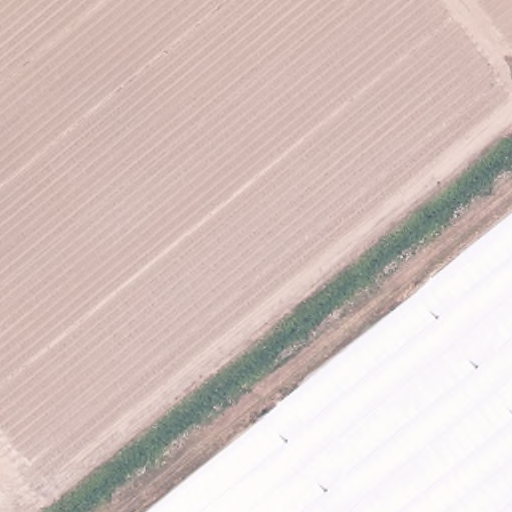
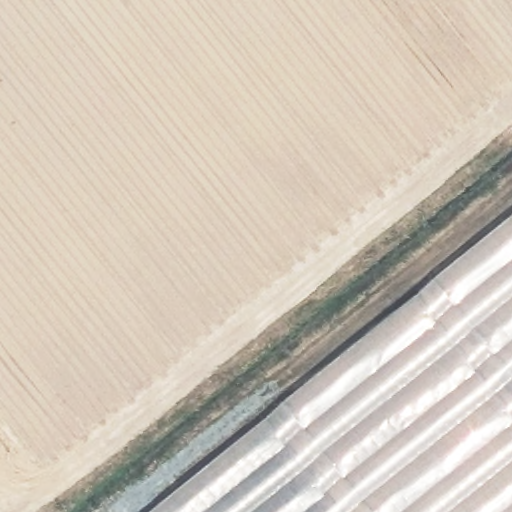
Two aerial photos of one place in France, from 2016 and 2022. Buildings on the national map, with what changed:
unchanged [(151,512),(512,218),(512,512),(151,512)]

